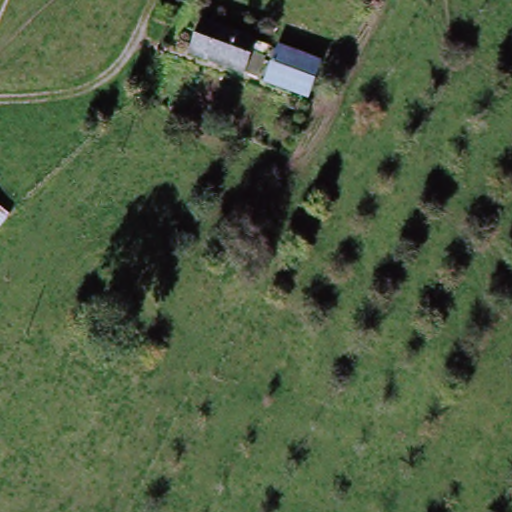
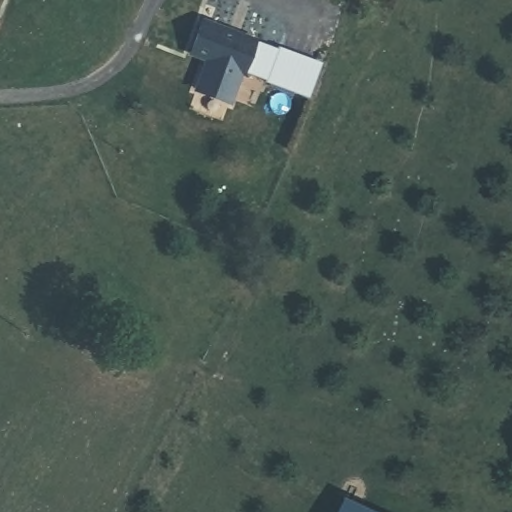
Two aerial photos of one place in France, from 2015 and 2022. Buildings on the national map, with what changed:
unchanged [(191,49),(204,17),(256,38),(244,70),(191,49)]
unchanged [(251,72),(263,40),(321,61),(309,94),(251,72)]
new [(341,512),(349,496),(382,512),(341,512)]

